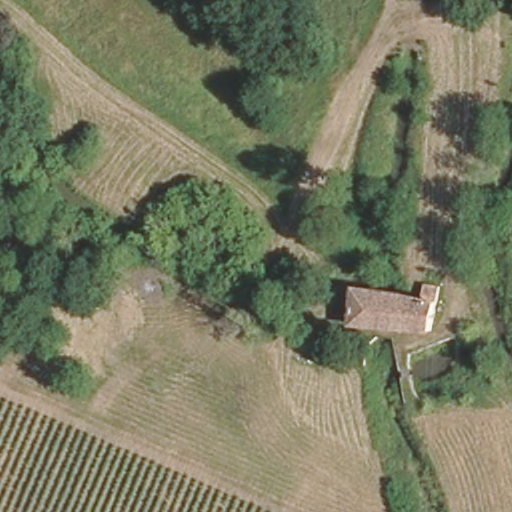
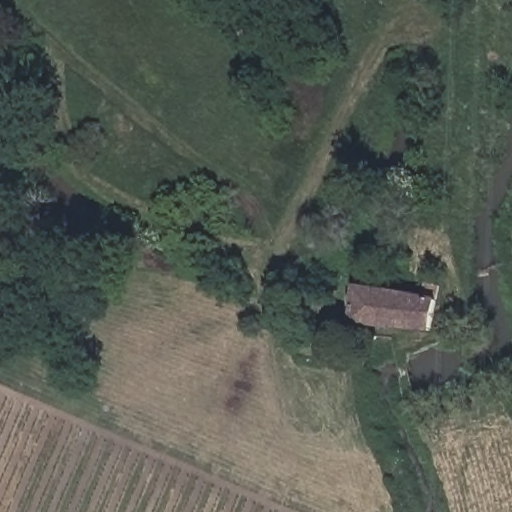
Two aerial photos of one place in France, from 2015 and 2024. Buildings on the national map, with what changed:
unchanged [(418,327),(405,327),(404,327),(403,327),(403,326),(392,326),(388,326),(378,325),(374,325),(364,324),(364,323),(364,319),(365,309),(365,307),(365,305),(366,291),(367,291),(382,293),(389,293),(397,294),(404,294),(412,295),(413,295),(414,295),(419,295),(419,291),(419,288),(418,281),(422,281),(427,281),(435,281),(438,281),(438,282),(437,284),(435,314),(433,328),(418,327)]

